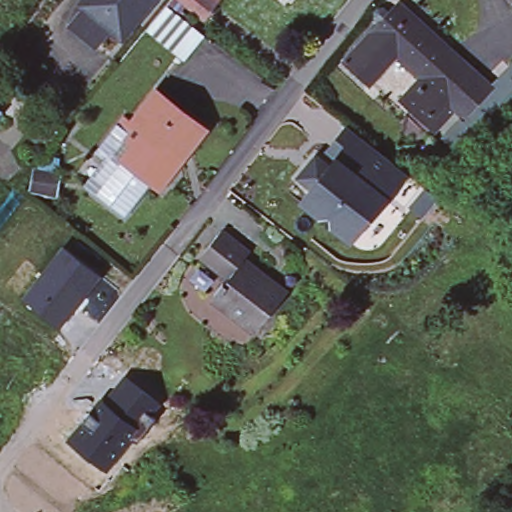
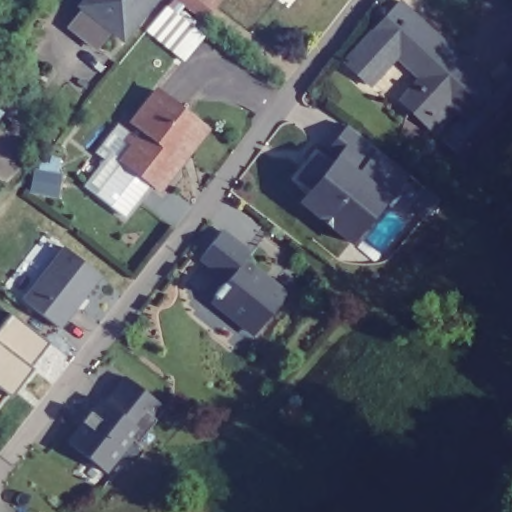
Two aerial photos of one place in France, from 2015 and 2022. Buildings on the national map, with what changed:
unchanged [(87,5),(84,2),(86,0),(125,0),(142,13),(122,36),(111,26),(96,44),(71,22),(87,5)]
unchanged [(125,0),(153,0),(142,13),(125,0)]
unchanged [(187,0),(215,0),(205,14),(187,0)]
unchanged [(444,52),(421,78),(396,56),(383,44),(375,54),(361,41),(379,22),(374,17),(373,12),(379,6),(384,5),(389,10),(398,0),(401,0),(450,45),(444,52)]
unchanged [(375,54),(383,44),(396,56),(369,86),(342,62),(361,41),(375,54)]
unchanged [(424,119),(406,103),(425,82),(421,78),(444,52),(450,45),(495,84),(465,117),(457,109),(437,131),(424,119)]
unchanged [(512,69),(512,110),(465,160),(443,141),(464,122),(492,89),(512,69)]
unchanged [(84,184),(106,159),(99,154),(112,137),(124,122),(130,127),(154,96),(205,135),(189,155),(157,196),(150,191),(127,219),(84,184)]
unchanged [(355,242),(305,201),(315,187),(302,177),(320,155),(332,165),(339,157),(330,151),(351,125),(376,144),(411,172),(355,242)]
unchanged [(202,257),(222,233),(249,255),(243,262),(287,297),(257,334),(214,299),(230,280),(202,257)]
unchanged [(20,300),(63,247),(102,277),(59,329),(20,300)]
new [(48,342),(29,367),(31,368),(11,395),(7,391),(0,400),(0,327),(11,313),(48,342)]
unchanged [(102,401),(124,376),(162,407),(152,419),(154,421),(137,443),(132,441),(105,473),(66,442),(102,401)]

